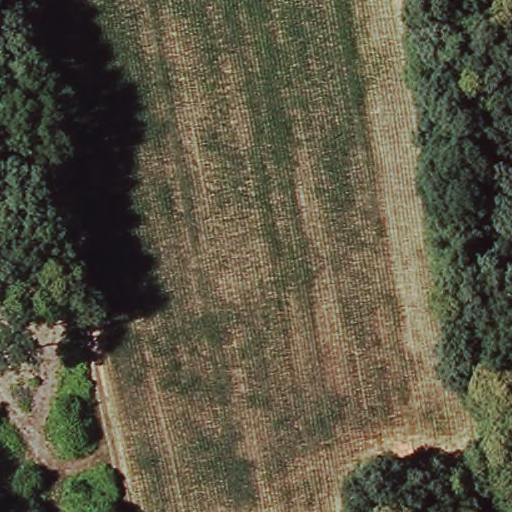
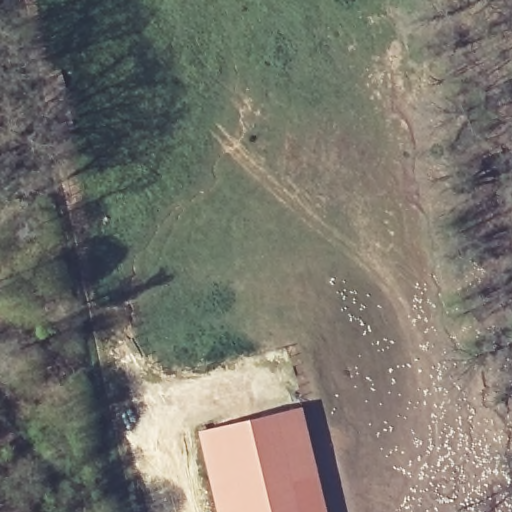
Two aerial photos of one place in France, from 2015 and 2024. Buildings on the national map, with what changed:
new [(305,405),(330,512),(221,512),(202,431),(305,405)]

